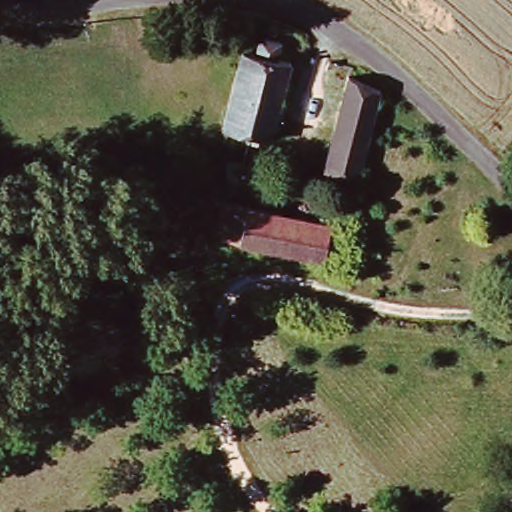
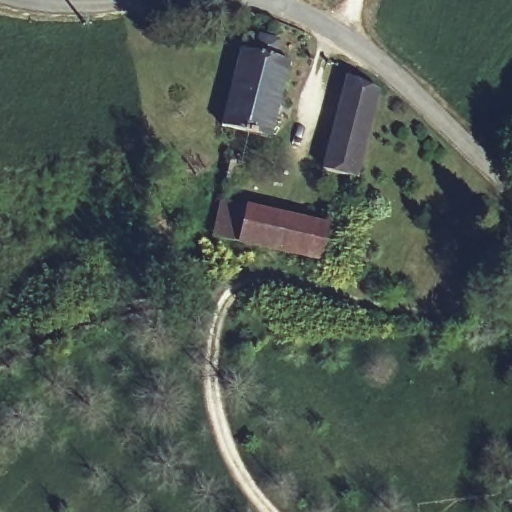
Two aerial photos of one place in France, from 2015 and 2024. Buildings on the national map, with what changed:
unchanged [(271,142),(223,130),(242,54),(256,57),(259,42),(280,46),(276,63),(291,66),(271,142)]
unchanged [(350,76),(380,88),(357,179),(324,170),(350,76)]
unchanged [(255,167),(247,207),(332,225),(324,261),(220,240),(236,163),(255,167)]

